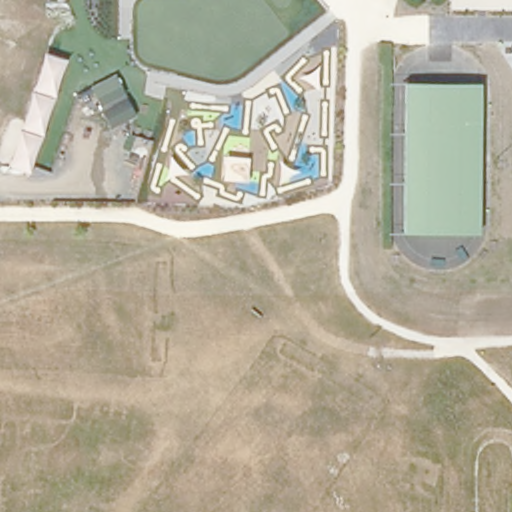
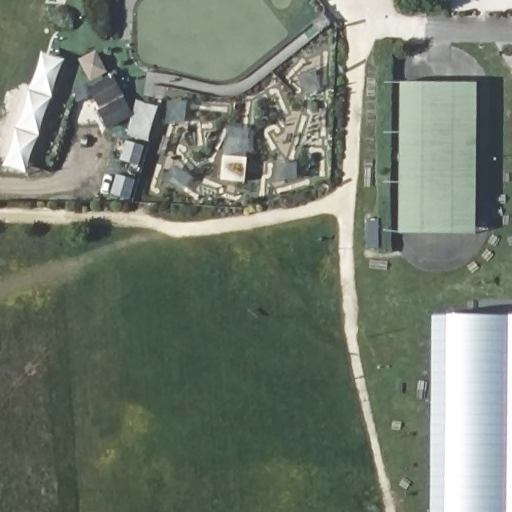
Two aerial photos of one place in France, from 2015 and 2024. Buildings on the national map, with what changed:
unchanged [(122,92),(98,104),(89,86),(113,74),(122,92)]
unchanged [(478,233),(397,230),(400,81),(478,81),(478,233)]
unchanged [(133,115),(110,127),(100,107),(124,96),(133,115)]
new [(431,512),(433,315),(512,316),(512,512),(431,512)]

